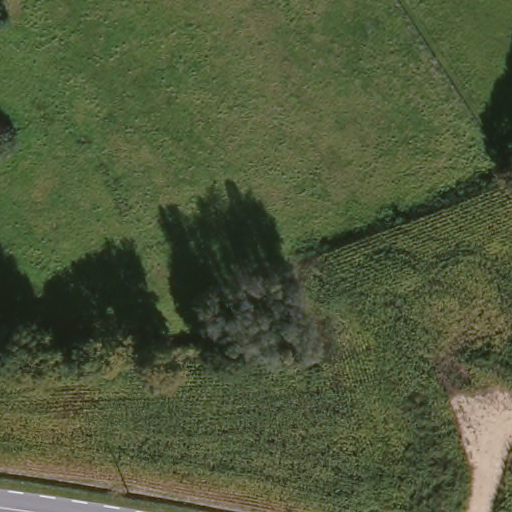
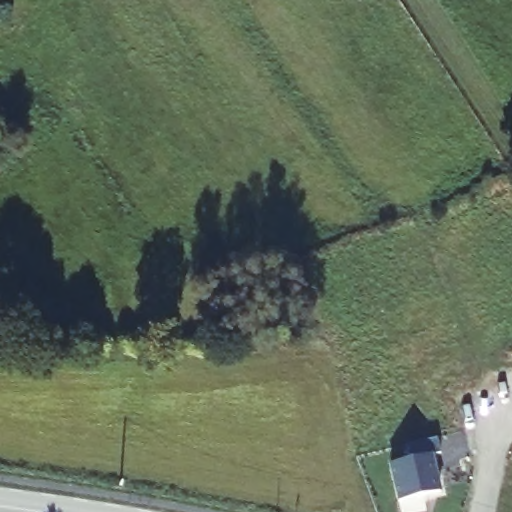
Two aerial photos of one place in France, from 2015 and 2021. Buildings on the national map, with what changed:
new [(411,460),(407,445),(437,438),(441,454),(431,456),(440,492),(400,502),(391,465),(411,460)]

